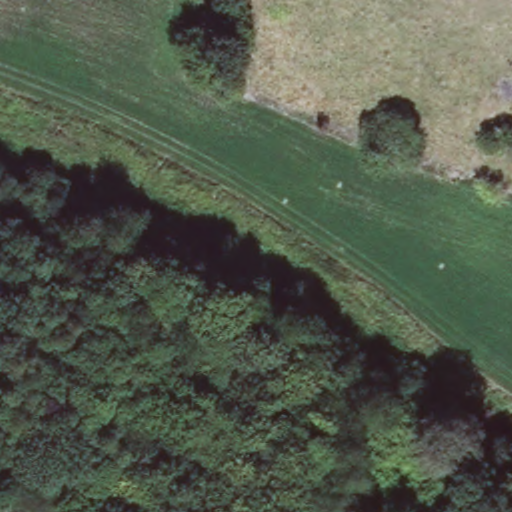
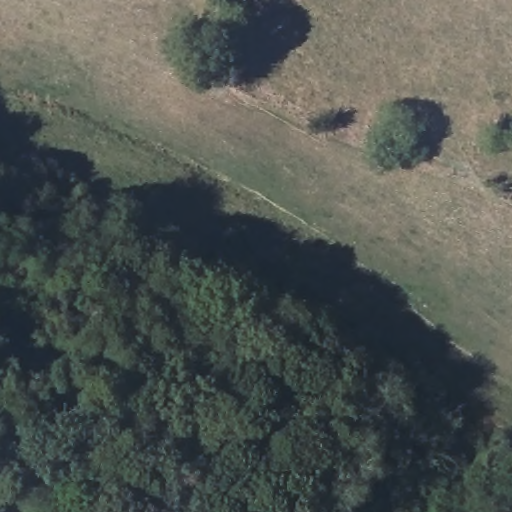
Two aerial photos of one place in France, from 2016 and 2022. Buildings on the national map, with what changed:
[]

